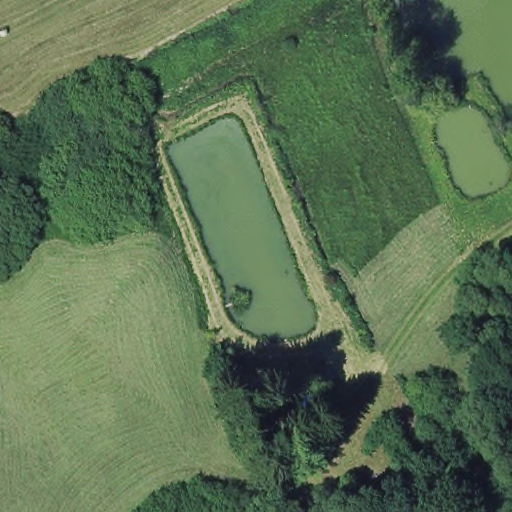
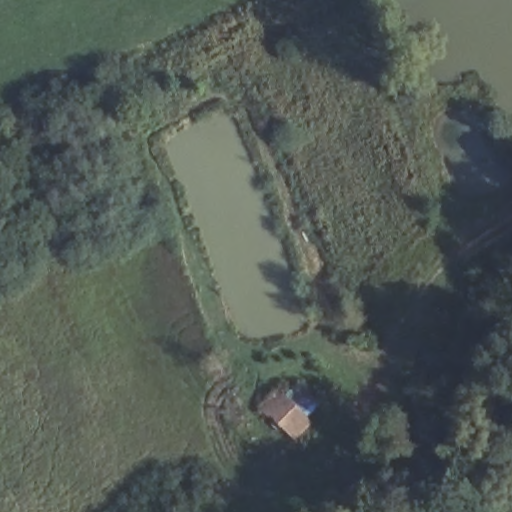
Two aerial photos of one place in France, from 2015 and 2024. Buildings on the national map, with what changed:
unchanged [(264,408),(283,394),(288,400),(298,416),(294,419),(279,430),(264,408)]

